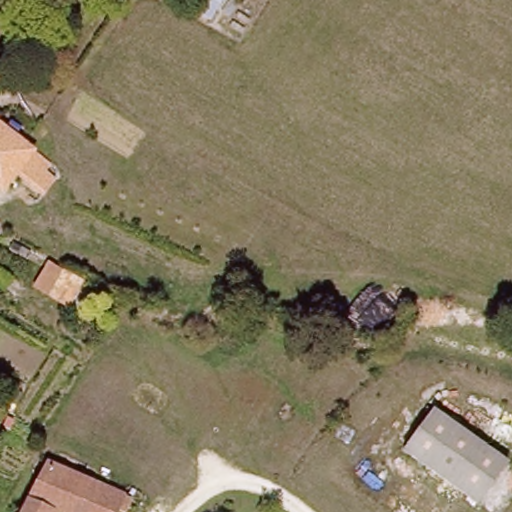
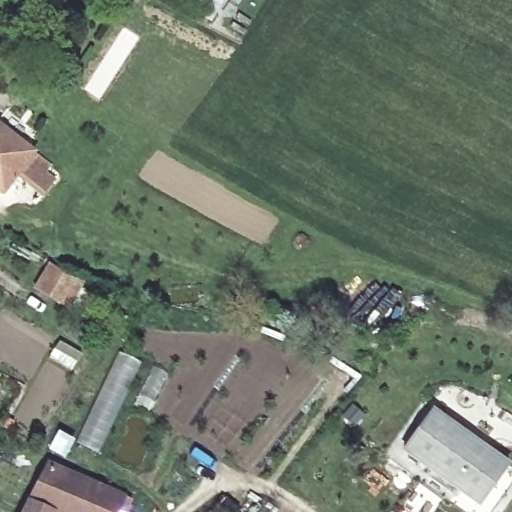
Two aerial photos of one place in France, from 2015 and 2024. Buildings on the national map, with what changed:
unchanged [(28,154),(55,175),(38,199),(12,178),(0,195),(0,132),(28,154)]
unchanged [(45,265),(83,286),(65,312),(29,292),(45,265)]
new [(124,390),(123,397),(114,416),(108,419),(100,440),(96,444),(82,437),(120,356),(132,362),(120,387),(124,390)]
unchanged [(432,413),(505,468),(474,507),(402,453),(432,413)]
unchanged [(48,468),(58,458),(79,468),(73,480),(123,503),(119,512),(20,512),(48,468)]

